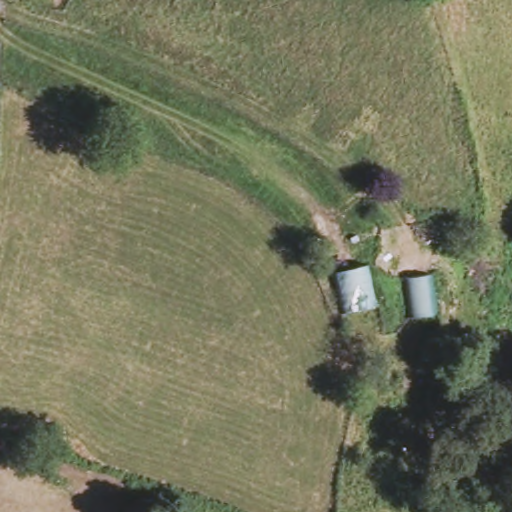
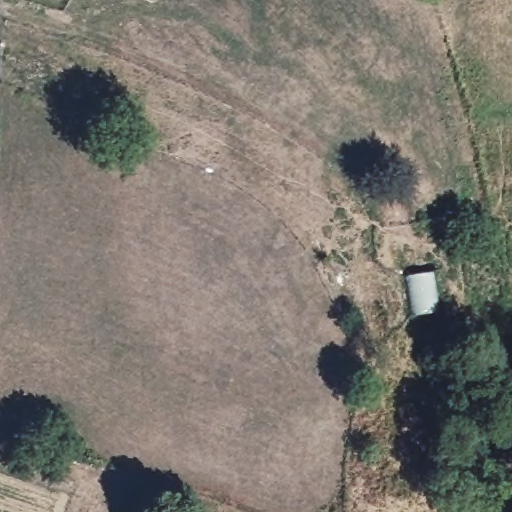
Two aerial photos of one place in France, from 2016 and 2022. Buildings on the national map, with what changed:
unchanged [(341,312),(333,271),(366,263),(375,303),(341,312)]
unchanged [(411,317),(404,278),(425,273),(431,313),(411,317)]

